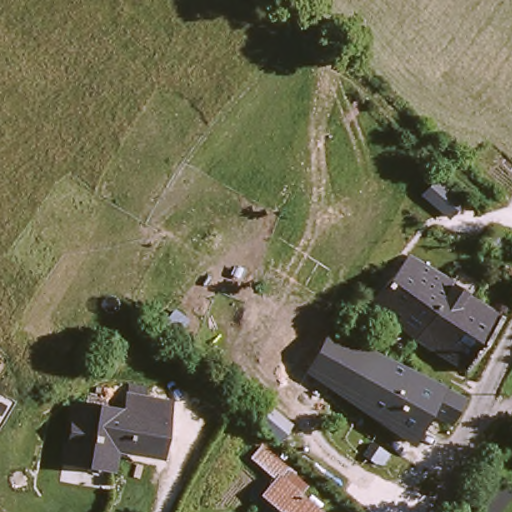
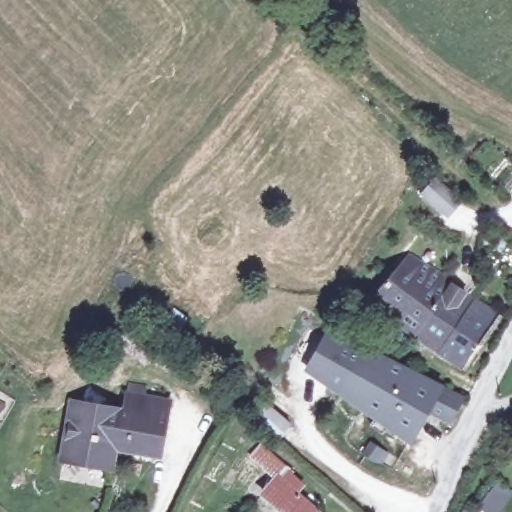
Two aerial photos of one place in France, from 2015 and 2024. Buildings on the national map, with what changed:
unchanged [(442,212),(419,193),(433,173),(457,192),(442,212)]
unchanged [(491,236),(499,244),(493,250),(485,242),(491,236)]
unchanged [(412,252),(454,283),(452,285),(466,294),(500,323),(465,372),(418,334),(412,329),(377,292),(412,252)]
unchanged [(457,397),(440,422),(425,414),(405,444),(305,377),(334,330),(355,344),(362,333),(457,397)]
unchanged [(167,409),(157,459),(113,449),(108,471),(62,461),(73,407),(125,419),(129,402),(167,409)]
unchanged [(263,441),(285,463),(279,468),(297,488),(293,490),(314,512),(280,512),(262,494),(274,481),(250,455),(263,441)]
unchanged [(374,455),(385,464),(378,474),(367,464),(374,455)]

